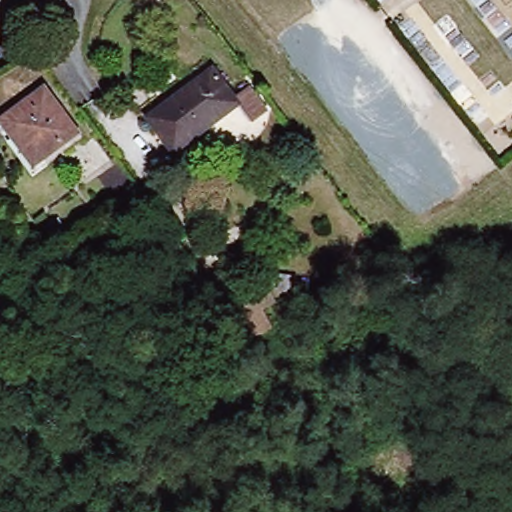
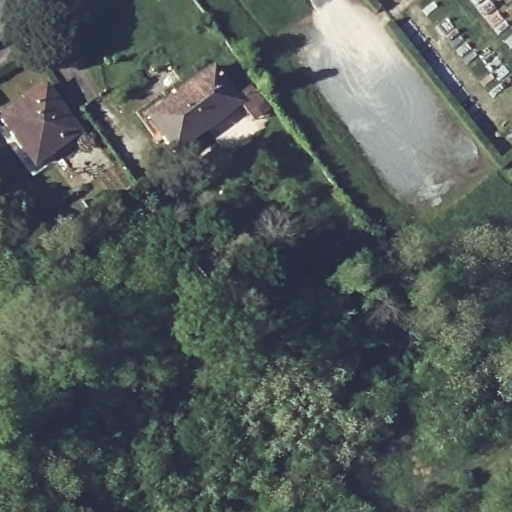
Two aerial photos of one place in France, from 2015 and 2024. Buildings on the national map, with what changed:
unchanged [(160,108),(209,70),(232,101),(251,86),(272,109),(255,124),(243,109),(240,111),(235,105),(174,152),(162,136),(148,118),(160,108)]
unchanged [(2,120),(44,89),(75,130),(33,161),(2,120)]
unchanged [(277,302),(265,310),(272,329),(245,345),(227,306),(265,281),(277,302)]

